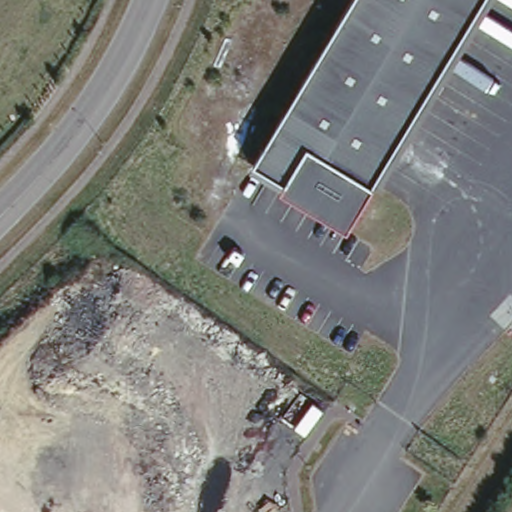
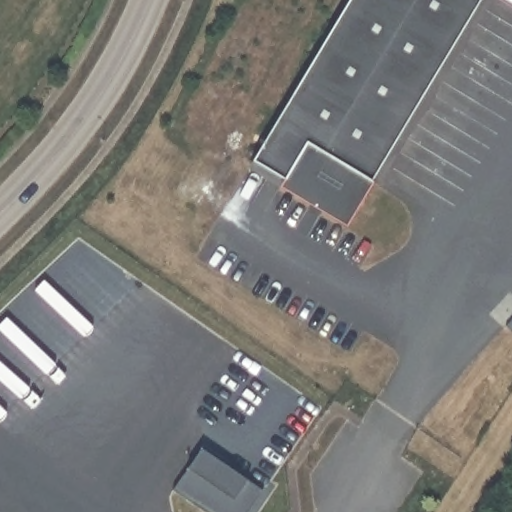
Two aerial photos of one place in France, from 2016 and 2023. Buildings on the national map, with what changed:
unchanged [(372,184),(349,226),(284,182),(256,165),(354,0),(483,0),(372,184)]
new [(208,512),(176,490),(203,450),(263,491),(249,512),(208,512)]

